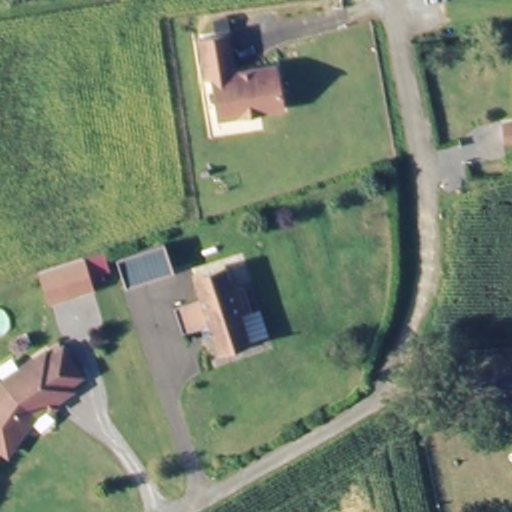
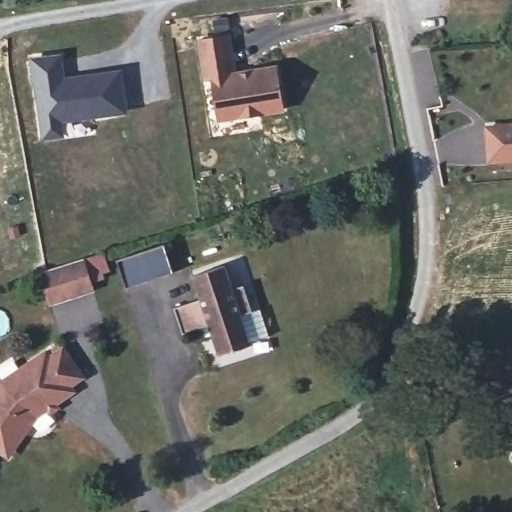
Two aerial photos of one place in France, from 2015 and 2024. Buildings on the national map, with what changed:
unchanged [(237,30),(243,69),(285,61),(291,106),(226,115),(220,73),(214,75),(207,35),(237,30)]
new [(63,52),(66,74),(122,67),(129,114),(67,122),(70,136),(41,141),(29,57),(63,52)]
unchanged [(508,140),(506,123),(512,122),(512,139),(508,140)]
unchanged [(164,248),(172,277),(125,292),(116,264),(164,248)]
unchanged [(82,263),(91,295),(48,307),(39,276),(82,263)]
unchanged [(221,267),(227,287),(237,284),(246,307),(235,311),(245,342),(215,352),(205,322),(181,330),(174,308),(198,300),(190,277),(221,267)]
unchanged [(1,456),(0,455),(0,387),(42,361),(45,364),(57,356),(77,382),(64,391),(65,393),(26,420),(1,456)]

